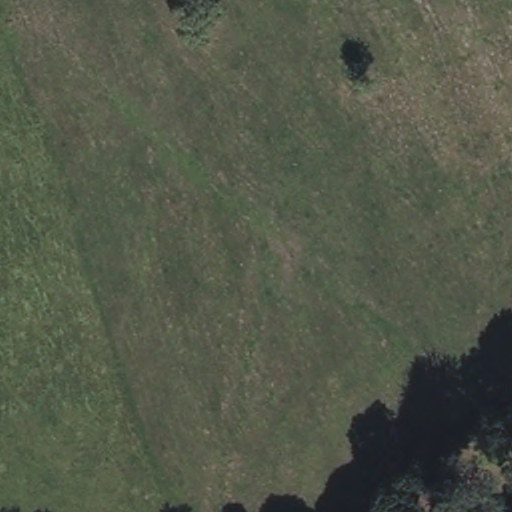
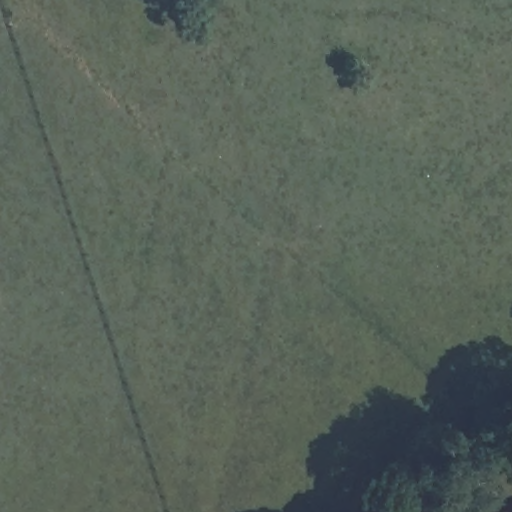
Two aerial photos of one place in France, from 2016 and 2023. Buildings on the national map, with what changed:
unchanged [(512,512),(500,512),(512,510),(512,512)]

